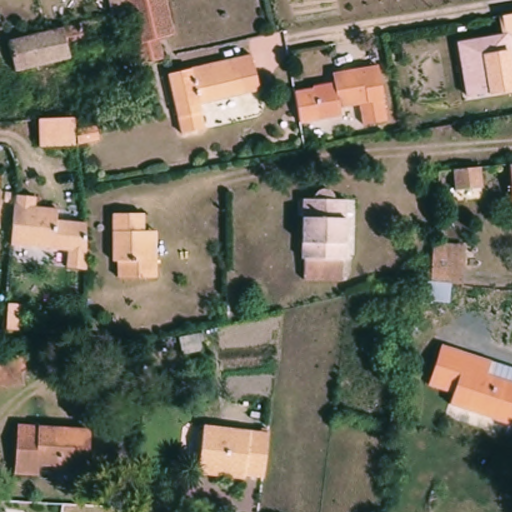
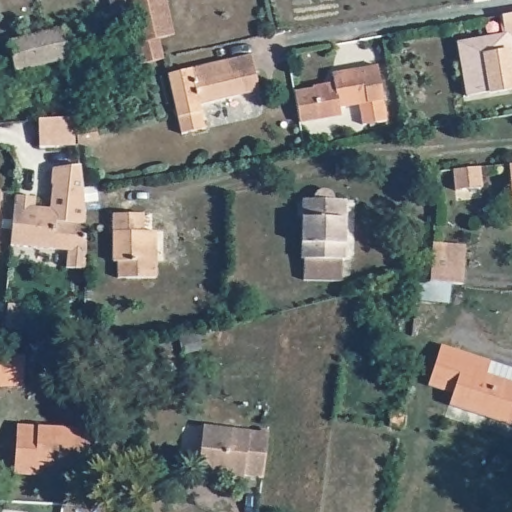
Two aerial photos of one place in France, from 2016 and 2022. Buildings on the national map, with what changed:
new [(126,16),(111,19),(107,0),(123,0),(126,16)]
unchanged [(140,66),(125,0),(165,0),(174,36),(158,40),(163,61),(140,66)]
unchanged [(512,78),(512,97),(466,105),(457,49),(504,41),(501,21),(512,19),(512,62),(510,63),(512,78)]
unchanged [(54,33),(84,26),(89,48),(71,53),(73,62),(72,62),(28,72),(17,75),(11,42),(54,33)]
unchanged [(261,94),(205,105),(210,129),(186,134),(172,72),(252,54),(261,94)]
unchanged [(316,93),(316,91),(337,88),(336,78),(381,71),(386,105),(386,106),(389,126),(366,130),(362,109),(342,112),(343,120),(302,126),(298,98),(298,96),(316,93)]
unchanged [(40,151),(38,141),(35,122),(48,120),(49,120),(57,120),(58,121),(71,120),(72,125),(79,124),(80,132),(74,133),(74,135),(76,146),(40,151)]
unchanged [(478,186),(455,188),(452,167),(476,164),(478,186)]
new [(54,216),(54,205),(50,204),(51,168),(79,165),(87,218),(54,216)]
unchanged [(512,171),(512,184),(510,172),(512,171)]
unchanged [(32,193),(31,203),(54,205),(54,216),(87,218),(87,221),(87,222),(86,263),(86,264),(66,263),(66,252),(67,246),(9,242),(10,240),(12,192),(32,193)]
unchanged [(315,204),(315,203),(315,201),(316,200),(316,198),(317,197),(318,196),(320,194),(321,194),(323,193),(325,192),(327,192),(329,193),(330,193),(331,193),(333,194),(334,195),(335,196),(336,197),(337,199),(337,200),(338,202),(338,204),(338,205),(346,205),(345,287),(303,286),(305,204),(315,204)]
unchanged [(160,265),(160,282),(122,280),(124,262),(115,262),(116,215),(146,215),(145,234),(152,234),(161,235),(160,265)]
unchanged [(432,284),(435,258),(437,249),(470,251),(466,265),(466,287),(432,284)]
unchanged [(87,336),(68,335),(68,322),(86,322),(87,336)]
unchanged [(453,397),(430,390),(444,350),(512,372),(512,427),(450,408),(453,397)]
unchanged [(27,361),(29,390),(0,391),(0,362),(27,361)]
unchanged [(405,427),(392,424),(395,410),(406,413),(405,427)]
unchanged [(268,476),(251,474),(250,478),(204,473),(210,424),(273,433),(268,476)]
unchanged [(89,474),(39,470),(39,479),(15,478),(18,432),(91,434),(89,474)]

